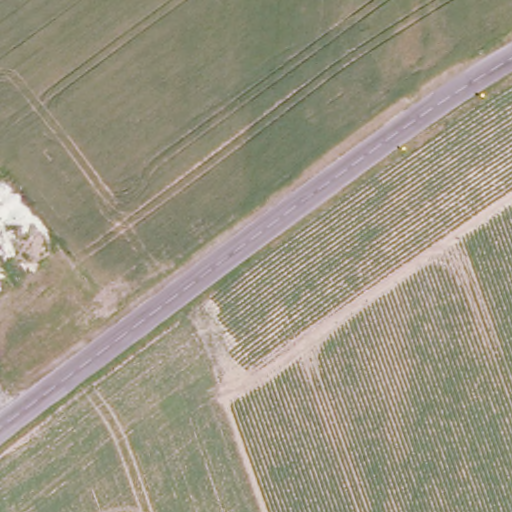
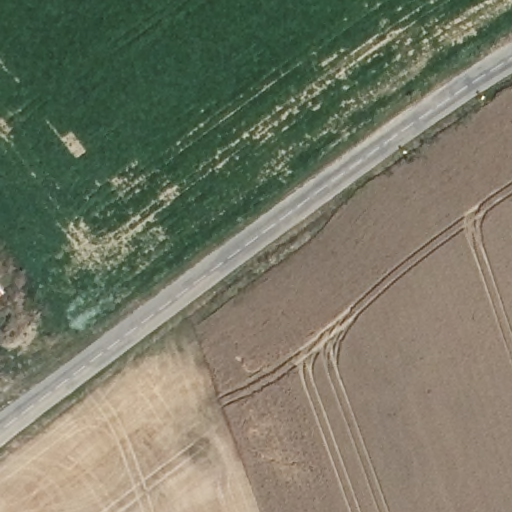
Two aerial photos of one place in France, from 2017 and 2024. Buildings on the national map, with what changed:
unchanged [(0,295),(0,292),(2,294),(0,295)]

